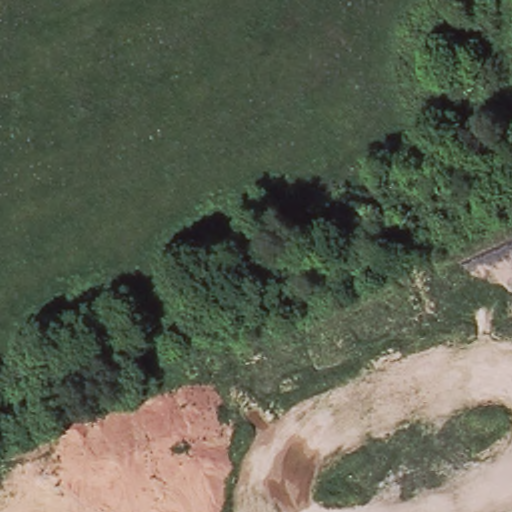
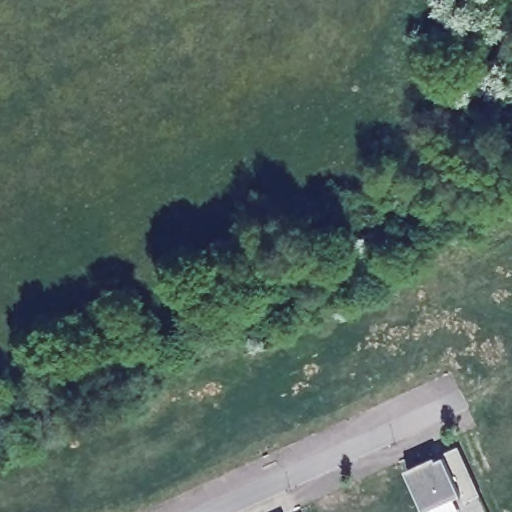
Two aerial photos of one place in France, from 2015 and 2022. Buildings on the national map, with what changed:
new [(435,455),(436,458),(442,455),(442,452),(457,445),(479,492),(468,496),(465,491),(424,510),(405,468),(435,455)]

